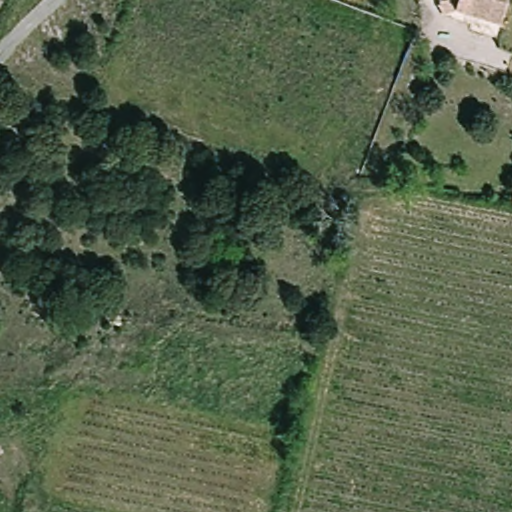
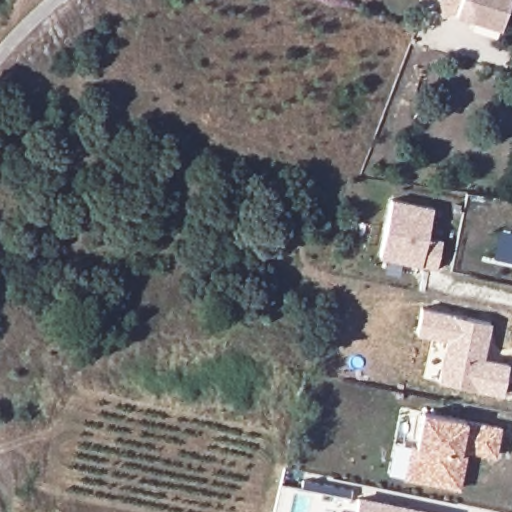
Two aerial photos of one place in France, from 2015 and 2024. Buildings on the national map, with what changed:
unchanged [(505,24),(458,11),(443,13),(440,0),(512,0),(505,24)]
unchanged [(512,186),(512,196),(510,195),(512,186)]
new [(436,271),(420,267),(380,256),(392,198),(433,206),(427,235),(443,239),(436,271)]
new [(485,357),(510,363),(503,395),(437,382),(446,340),(416,335),(422,306),(492,324),(485,357)]
new [(415,446),(422,410),(466,419),(502,427),(496,457),(468,452),(460,490),(403,478),(409,446),(415,446)]
new [(436,512),(356,512),(358,496),(436,512)]

